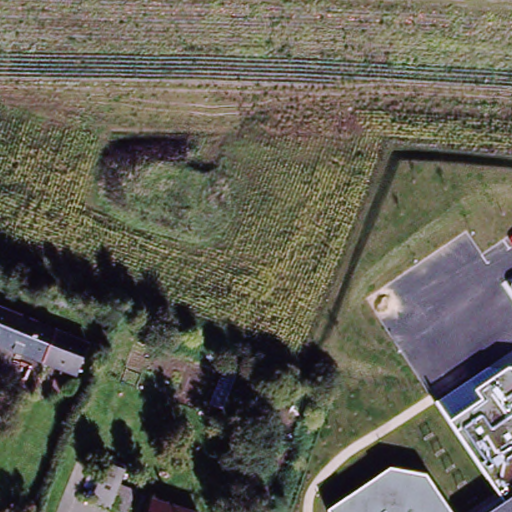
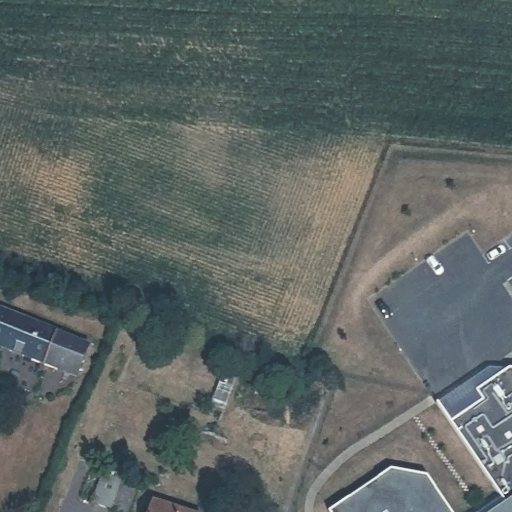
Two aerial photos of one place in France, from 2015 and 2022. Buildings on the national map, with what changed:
unchanged [(75,369),(0,340),(0,304),(88,338),(75,369)]
unchanged [(435,403),(488,366),(502,372),(507,368),(512,369),(512,512),(492,512),(503,503),(435,403)]
unchanged [(114,512),(110,510),(91,504),(104,465),(123,471),(118,488),(133,493),(126,512),(114,512)]
unchanged [(426,476),(450,512),(327,512),(389,470),(426,476)]
unchanged [(183,512),(148,512),(151,502),(183,512)]

